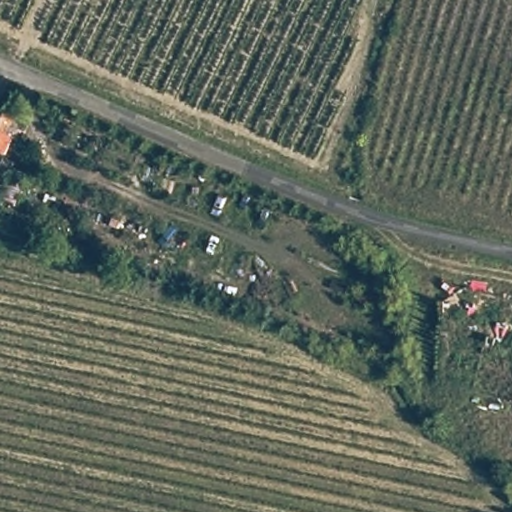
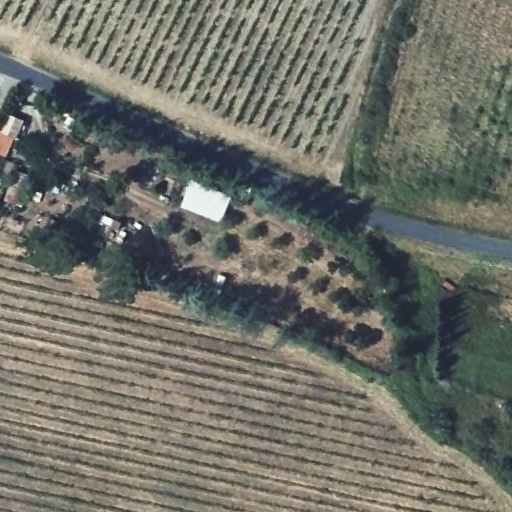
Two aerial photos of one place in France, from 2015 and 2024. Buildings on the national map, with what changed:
unchanged [(0,150),(0,118),(6,106),(23,116),(8,153),(0,150)]
unchanged [(3,197),(14,165),(28,169),(18,205),(3,197)]

